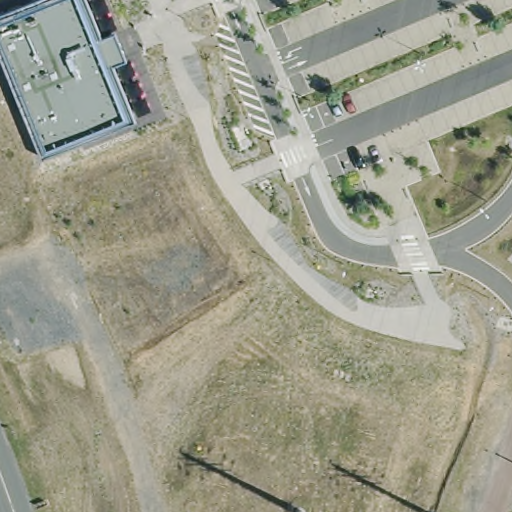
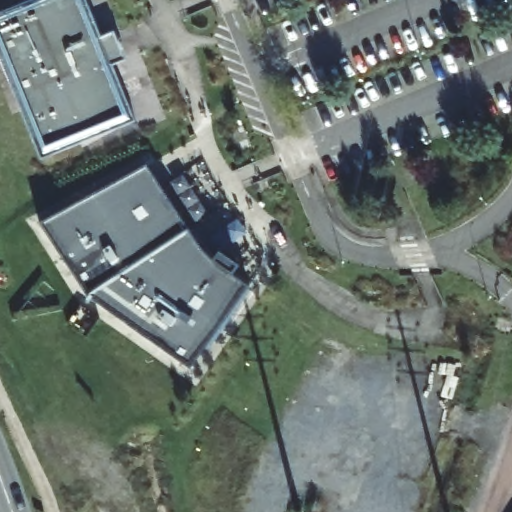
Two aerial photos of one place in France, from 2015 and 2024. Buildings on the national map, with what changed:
unchanged [(127,60),(114,66),(136,121),(41,158),(0,56),(0,13),(33,0),(87,0),(102,36),(115,31),(127,60)]
new [(202,249),(249,285),(191,367),(93,297),(67,261),(43,221),(147,165),(202,249)]

